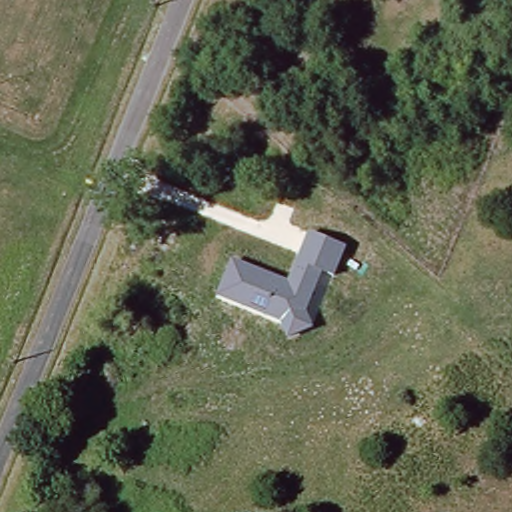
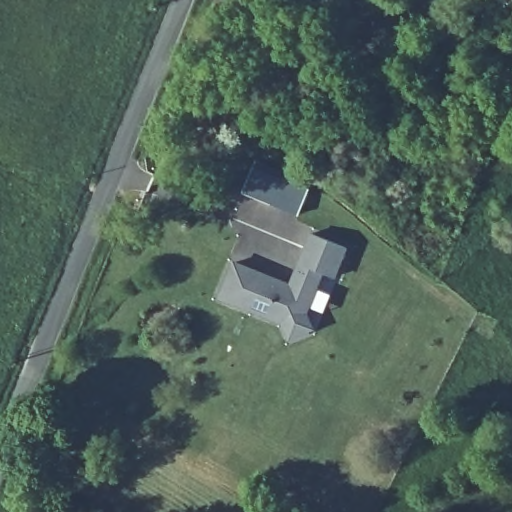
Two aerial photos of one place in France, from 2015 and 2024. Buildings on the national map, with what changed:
new [(241,193),(252,166),(309,189),(298,216),(241,193)]
unchanged [(349,248),(337,277),(324,272),(308,312),(315,329),(289,339),(283,323),(219,298),(234,259),(290,281),(309,232),(349,248)]

